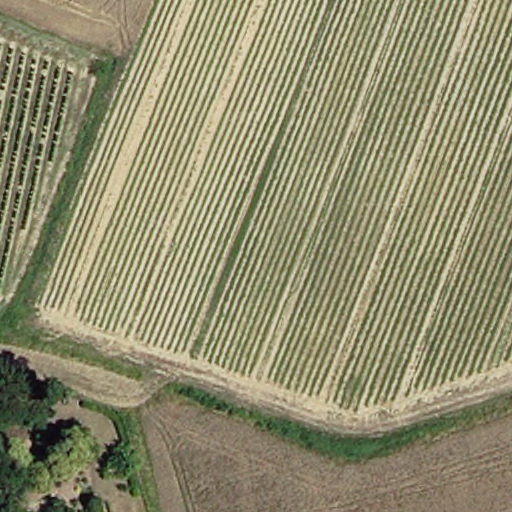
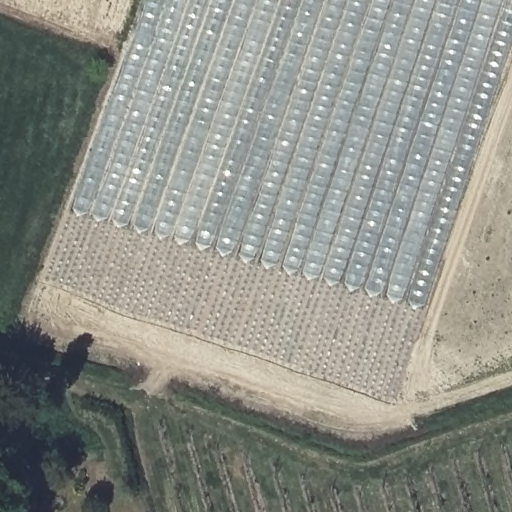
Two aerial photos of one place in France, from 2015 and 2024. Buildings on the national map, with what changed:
new [(75,209),(144,0),(512,0),(512,27),(424,306),(75,209)]

